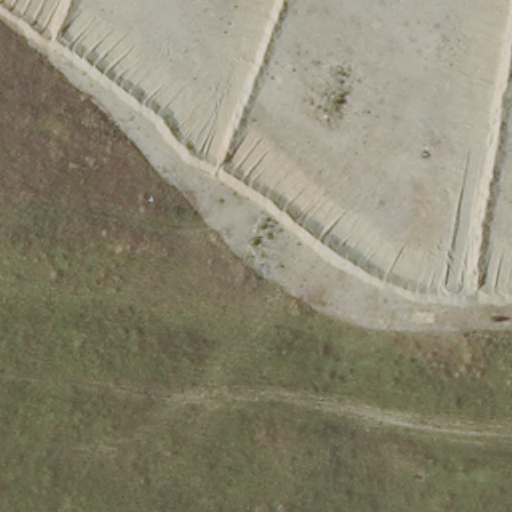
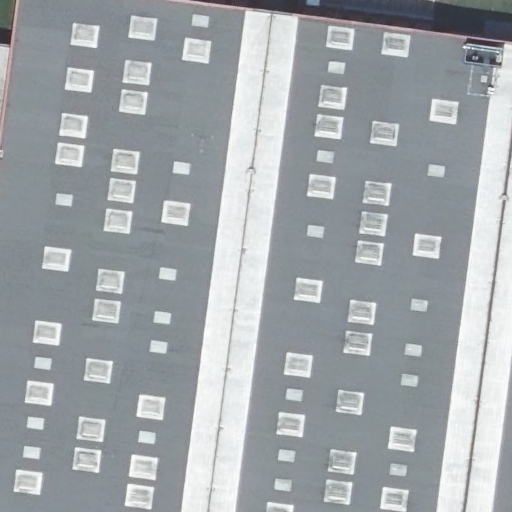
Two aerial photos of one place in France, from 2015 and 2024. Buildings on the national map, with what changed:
new [(0,512),(0,47),(7,47),(13,0),(118,0),(512,50),(512,512),(0,512)]

